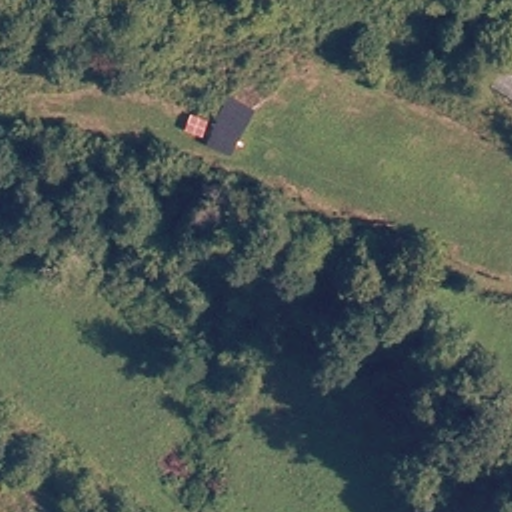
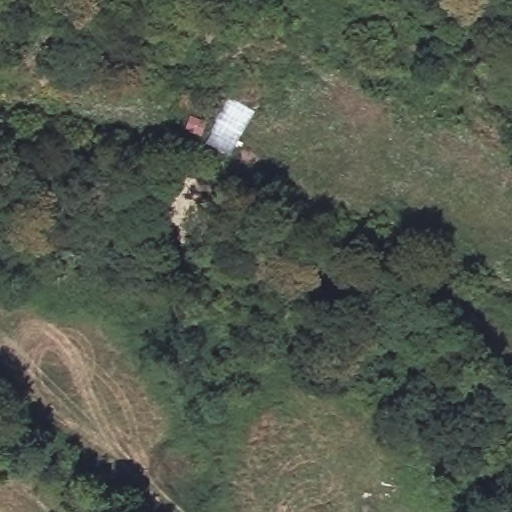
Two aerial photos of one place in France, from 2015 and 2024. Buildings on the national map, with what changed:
unchanged [(210,139),(229,105),(252,119),(233,154),(210,139)]

